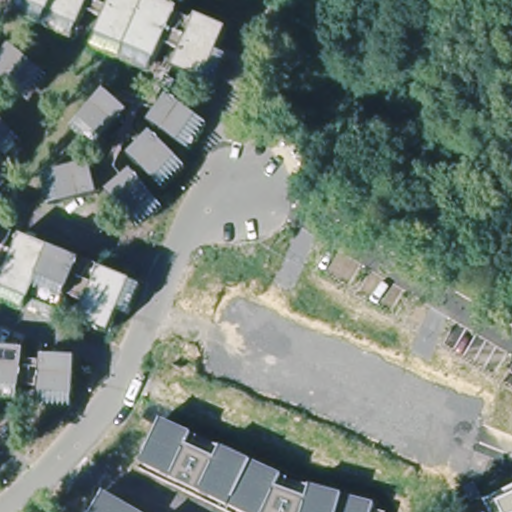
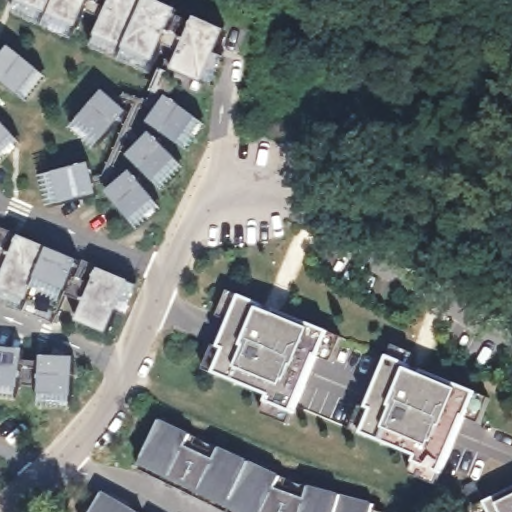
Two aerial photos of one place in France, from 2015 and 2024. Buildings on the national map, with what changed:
unchanged [(93,0),(80,30),(20,4),(22,0),(93,0)]
unchanged [(179,17),(157,65),(128,52),(99,39),(116,0),(140,0),(150,4),(179,17)]
unchanged [(226,39),(205,86),(174,72),(195,25),(226,39)]
unchanged [(42,72),(21,98),(0,81),(0,63),(12,48),(42,72)]
unchanged [(177,85),(172,95),(165,90),(169,81),(177,85)]
unchanged [(125,119),(100,146),(76,125),(101,97),(125,119)]
unchanged [(198,127),(179,154),(149,132),(167,105),(198,127)]
unchanged [(0,163),(0,118),(22,141),(0,163)]
unchanged [(129,165),(152,141),(179,169),(155,191),(129,165)]
unchanged [(47,181),(85,171),(93,204),(55,213),(47,181)]
unchanged [(133,179),(157,207),(132,229),(108,201),(133,179)]
unchanged [(20,241),(82,267),(61,315),(0,290),(20,241)]
unchanged [(112,331),(81,317),(101,270),(132,283),(134,284),(113,331),(112,331)]
new [(330,332),(342,338),(332,365),(318,357),(295,413),(290,425),(264,415),(270,403),(274,395),(215,374),(205,370),(215,347),(221,349),(231,323),(220,317),(230,292),(241,298),(330,332)]
unchanged [(27,351),(22,391),(0,388),(0,348),(27,351)]
unchanged [(44,357),(77,359),(75,408),(42,407),(44,357)]
new [(412,475),(417,465),(420,456),(365,435),(373,412),(368,410),(390,358),(477,395),(491,399),(480,425),(466,420),(443,473),(437,486),(412,475)]
unchanged [(229,451),(311,487),(375,504),(372,512),(234,512),(140,464),(161,421),(229,451)]
unchanged [(512,512),(489,512),(485,503),(512,490),(512,512)]
unchanged [(138,512),(93,512),(103,492),(138,512)]

